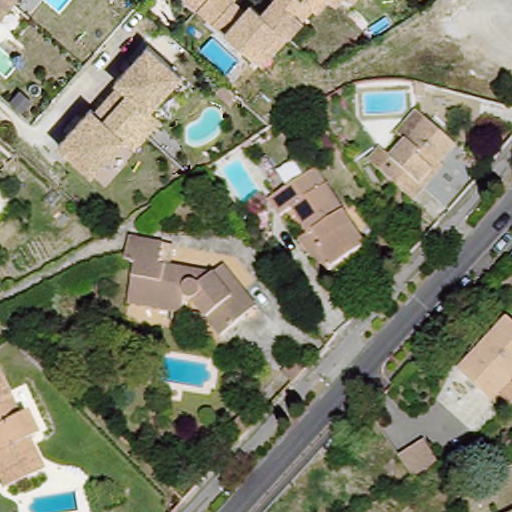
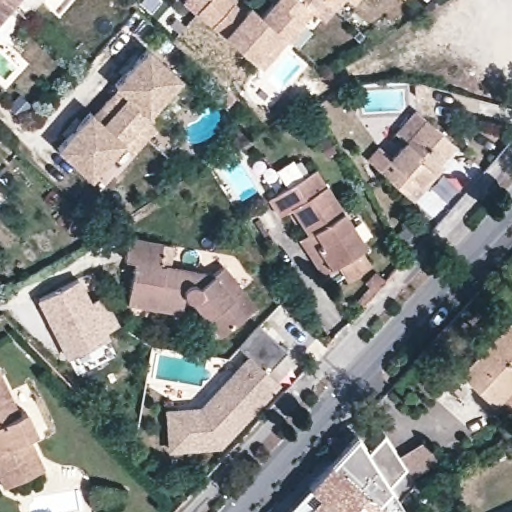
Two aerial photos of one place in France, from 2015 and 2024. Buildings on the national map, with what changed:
unchanged [(0,0),(14,0),(0,17),(0,0)]
unchanged [(262,11),(270,0),(345,0),(338,10),(329,4),(318,17),(311,10),(264,70),(223,32),(197,9),(201,4),(196,0),(245,0),(249,3),(262,11)]
unchanged [(353,0),(358,0),(357,2),(353,0)]
unchanged [(122,145),(90,180),(57,151),(90,115),(94,118),(118,91),(114,87),(146,52),(179,81),(147,117),(158,127),(146,141),(133,155),(122,145)]
unchanged [(427,183),(414,196),(383,167),(429,117),(457,142),(436,166),(439,169),(427,183)]
unchanged [(301,232),(309,227),(294,202),(282,210),(272,193),(318,163),(367,240),(333,263),(325,269),(301,232)]
unchanged [(241,323),(219,337),(204,314),(181,309),(128,297),(137,259),(128,256),(133,235),(166,243),(162,264),(216,276),(228,269),(244,295),(256,314),(241,323)]
new [(80,277),(91,300),(104,293),(120,325),(108,332),(110,337),(67,358),(37,299),(80,277)]
unchanged [(505,409),(494,400),(460,369),(509,317),(512,321),(512,401),(505,409)]
new [(200,407),(251,354),(280,383),(221,448),(170,451),(167,409),(200,407)]
unchanged [(17,413),(24,409),(36,430),(28,435),(46,465),(7,488),(0,476),(0,384),(7,396),(17,413)]
new [(439,463),(415,479),(406,467),(390,486),(404,508),(398,512),(283,512),(288,507),(357,431),(369,452),(386,435),(399,455),(424,440),(439,463)]
demolished [(130,484),(122,484),(123,472),(130,473),(130,484)]

